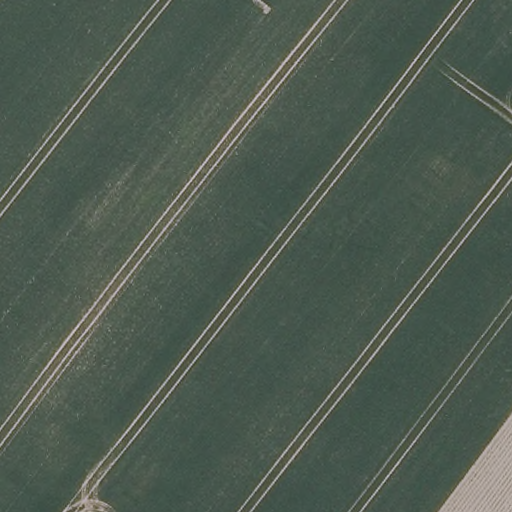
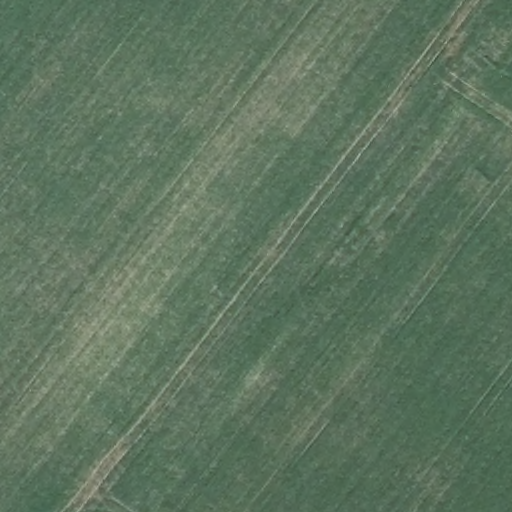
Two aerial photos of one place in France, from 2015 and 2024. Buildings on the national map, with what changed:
[]

